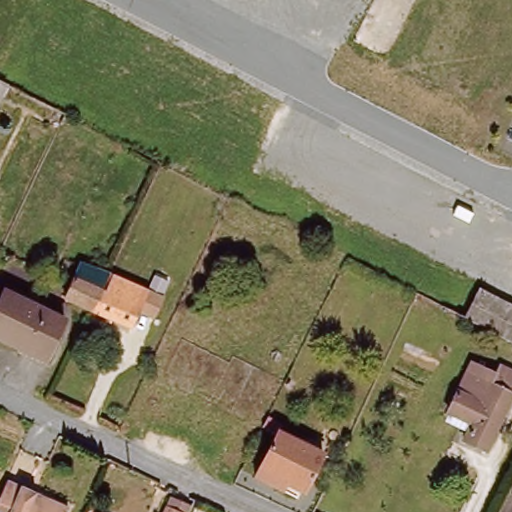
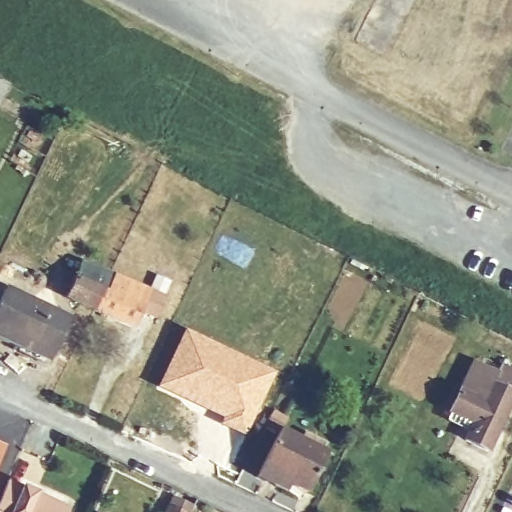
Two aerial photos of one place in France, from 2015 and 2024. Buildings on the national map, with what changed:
unchanged [(0,105),(0,77),(11,82),(0,105)]
unchanged [(94,310),(65,297),(74,279),(82,262),(110,275),(112,273),(115,275),(150,291),(132,328),(94,310)]
unchanged [(482,290),(512,305),(512,341),(467,318),(482,290)]
unchanged [(0,338),(0,302),(5,293),(65,320),(47,360),(0,338)]
new [(183,328),(275,373),(244,437),(217,423),(219,420),(155,386),(183,328)]
unchanged [(487,450),(467,440),(474,423),(450,412),(460,391),(474,362),(497,373),(500,365),(502,364),(512,369),(512,396),(492,441),(487,450)]
unchanged [(54,431),(45,450),(41,458),(25,451),(37,424),(54,431)]
unchanged [(302,492),(300,497),(260,477),(282,432),(326,454),(307,493),(302,492)]
new [(0,458),(0,442),(6,445),(0,458)]
unchanged [(69,512),(0,512),(0,504),(10,481),(71,506),(69,512)]
unchanged [(193,512),(168,512),(173,501),(194,510),(193,512)]

